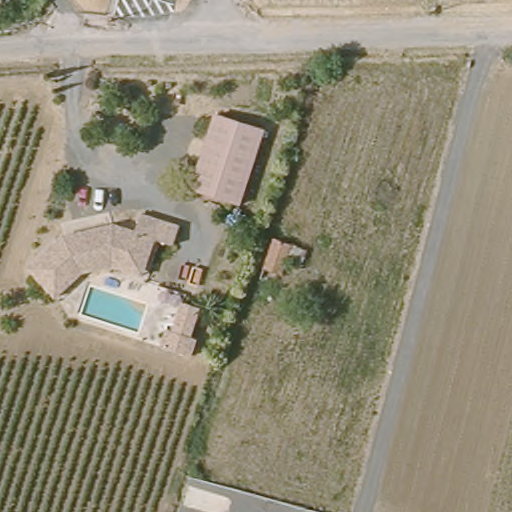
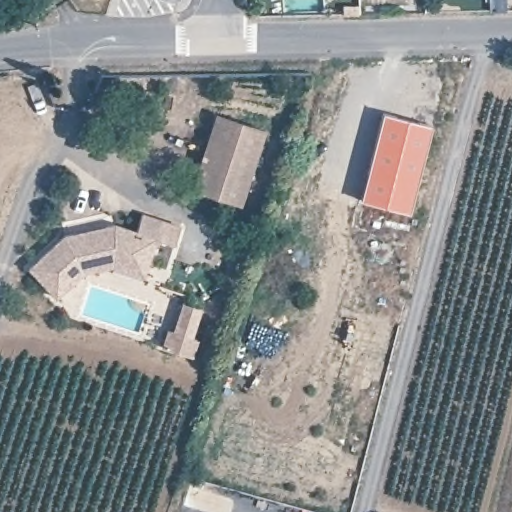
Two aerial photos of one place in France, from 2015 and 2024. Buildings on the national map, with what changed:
unchanged [(259,128),(236,197),(193,183),(216,114),(259,128)]
new [(431,125),(409,214),(361,201),(383,115),(431,125)]
unchanged [(145,210),(182,222),(176,242),(154,238),(142,270),(109,261),(75,272),(55,292),(32,271),(67,240),(122,223),(138,228),(145,210)]
unchanged [(303,248),(293,276),(273,269),(283,241),(303,248)]
new [(166,329),(173,331),(181,302),(202,308),(196,330),(200,331),(193,356),(161,348),(166,329)]

